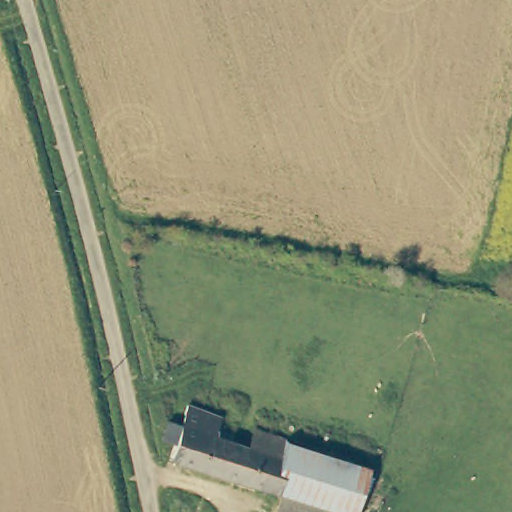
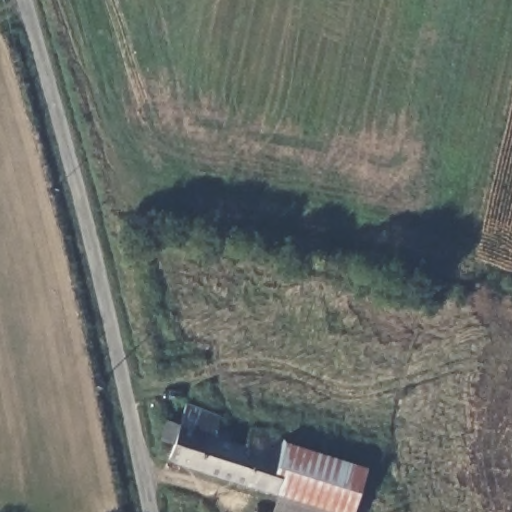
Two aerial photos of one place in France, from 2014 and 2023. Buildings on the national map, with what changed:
unchanged [(277,465),(273,501),(166,460),(171,445),(158,442),(165,422),(178,426),(185,406),(217,418),(211,440),(246,453),(277,465)]
unchanged [(246,453),(253,432),(362,471),(349,512),(270,512),(273,501),(277,465),(246,453)]

